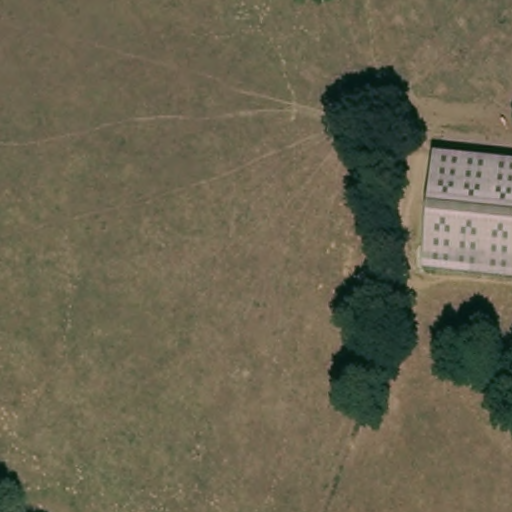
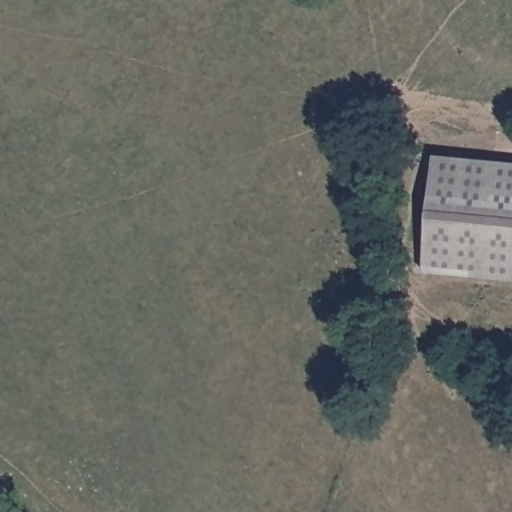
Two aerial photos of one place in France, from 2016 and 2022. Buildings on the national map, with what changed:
unchanged [(512,282),(424,272),(434,156),(512,164),(512,282)]

